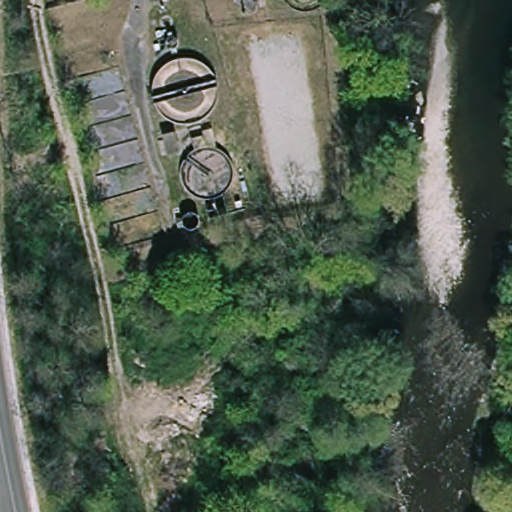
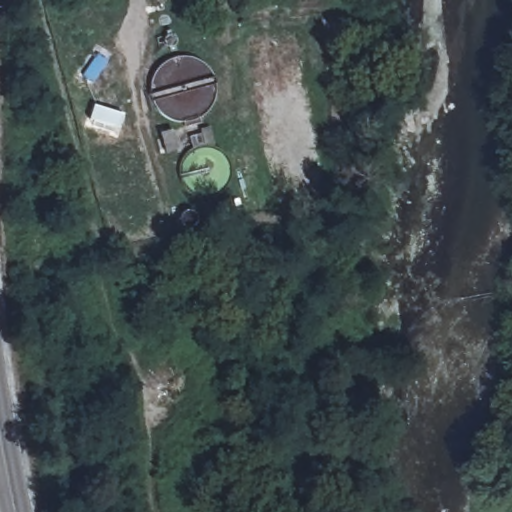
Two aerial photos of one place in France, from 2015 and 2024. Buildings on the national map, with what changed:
unchanged [(194,121),(200,140),(190,143),(184,125),(194,121)]

